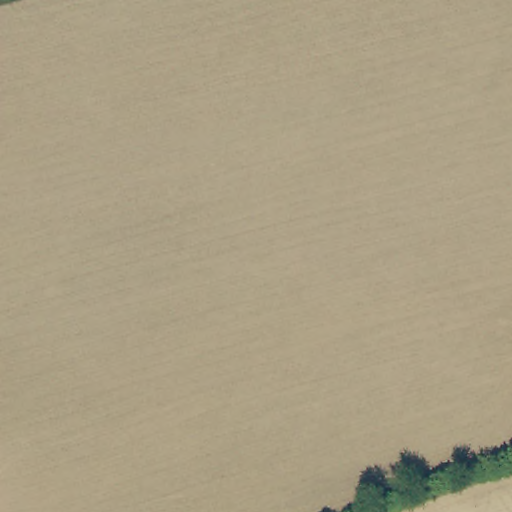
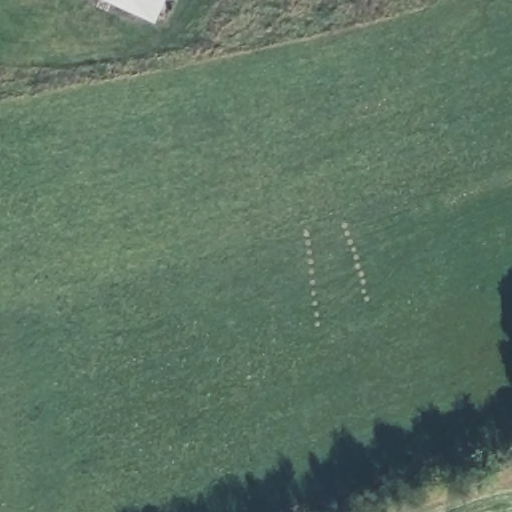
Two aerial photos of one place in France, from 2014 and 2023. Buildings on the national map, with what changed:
new [(103,0),(166,0),(155,24),(103,0)]

